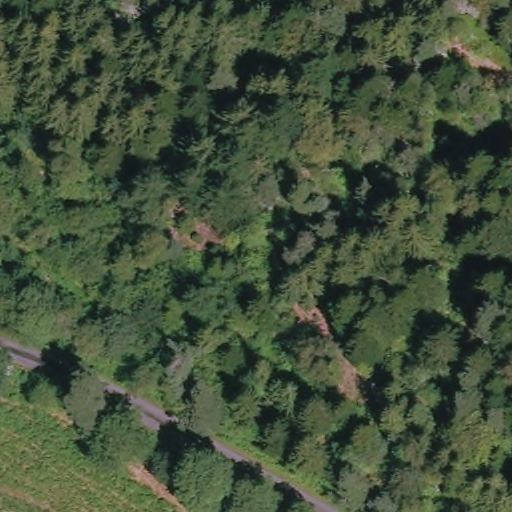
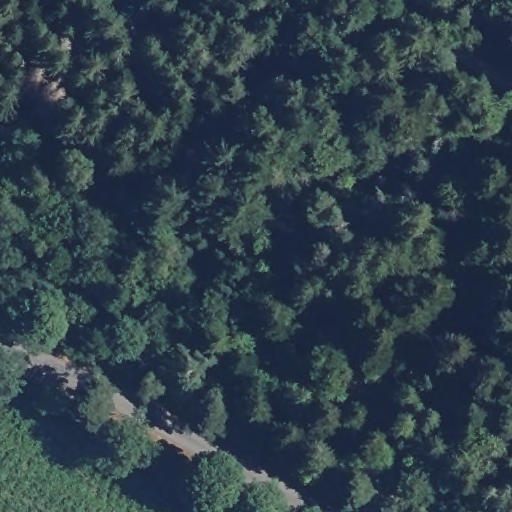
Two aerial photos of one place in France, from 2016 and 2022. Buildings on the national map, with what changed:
unchanged [(4,230),(0,233),(0,226),(4,230)]

